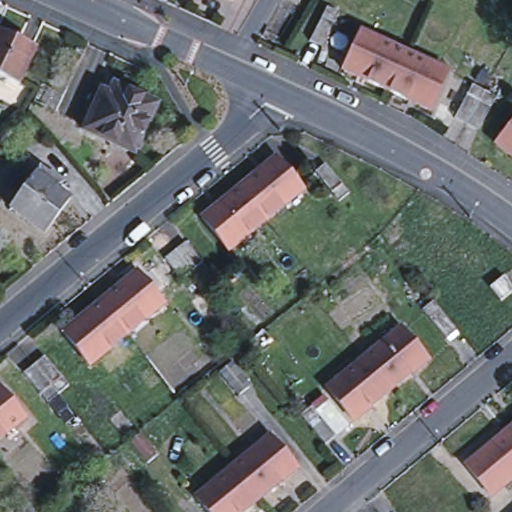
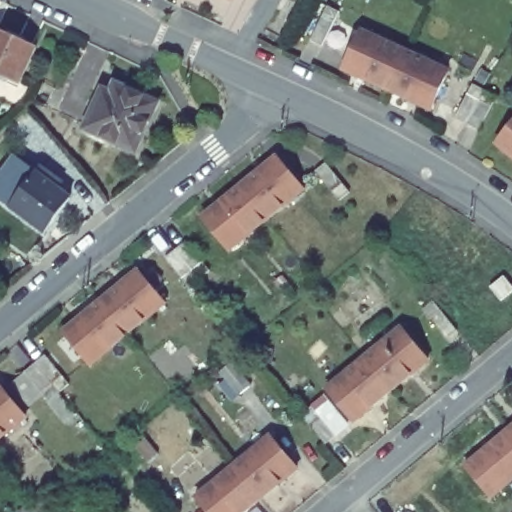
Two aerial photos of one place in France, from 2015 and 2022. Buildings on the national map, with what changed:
unchanged [(338,12),(321,45),(309,39),(326,6),(338,12)]
unchanged [(448,70),(430,109),(343,69),(360,30),(448,70)]
unchanged [(6,34),(45,52),(28,88),(0,75),(0,43),(2,44),(6,34)]
unchanged [(110,92),(113,83),(156,103),(134,151),(83,128),(101,89),(110,92)]
unchanged [(495,96),(478,129),(455,117),(472,84),(495,96)]
unchanged [(512,123),(512,155),(496,142),(512,123)]
unchanged [(303,190),(230,250),(202,217),(275,157),(303,190)]
unchanged [(325,163),(350,192),(340,200),(315,172),(325,163)]
unchanged [(61,180),(56,187),(70,197),(45,231),(10,207),(40,165),(61,180)]
unchanged [(185,241),(210,271),(199,279),(188,288),(163,258),(174,250),(185,241)]
unchanged [(164,304),(90,365),(63,332),(136,271),(164,304)]
unchanged [(503,276),(512,286),(512,292),(501,300),(490,287),(503,276)]
unchanged [(433,301),(457,330),(446,339),(422,310),(433,301)]
unchanged [(428,360),(355,422),(326,389),(401,328),(428,360)]
unchanged [(45,355),(69,385),(59,393),(48,402),(23,372),(33,364),(45,355)]
unchanged [(231,362),(249,384),(238,393),(220,371),(231,362)]
unchanged [(0,440),(0,388),(26,419),(0,440)]
unchanged [(313,407),(337,436),(326,445),(302,415),(313,407)]
unchanged [(492,497),(465,465),(512,426),(512,480),(492,497)]
unchanged [(140,432),(158,453),(147,462),(129,441),(140,432)]
unchanged [(245,512),(208,512),(195,497),(269,436),(296,469),(245,512)]
unchanged [(8,512),(18,504),(25,512),(8,512)]

